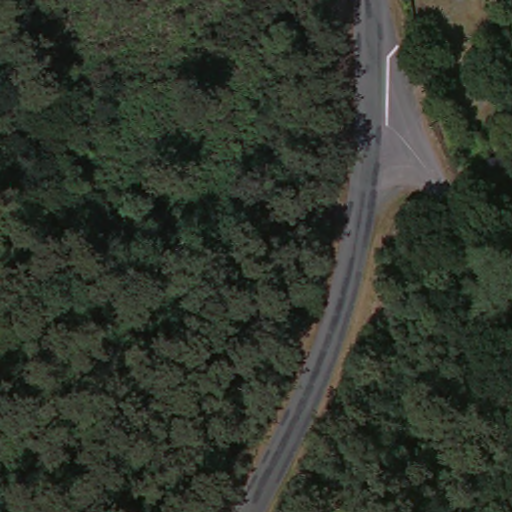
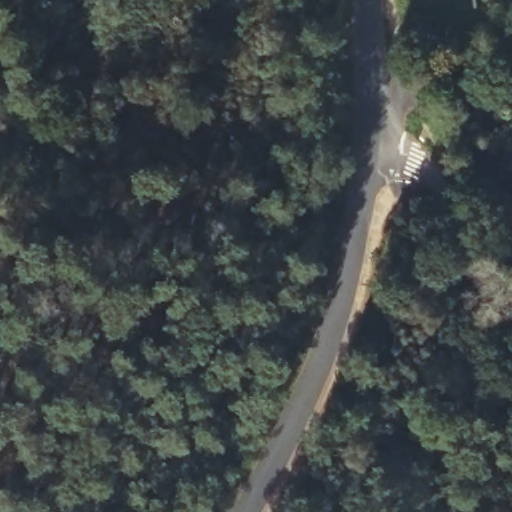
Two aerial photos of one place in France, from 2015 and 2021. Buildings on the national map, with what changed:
unchanged [(512,157),(512,181),(498,185),(492,163),(512,157)]

